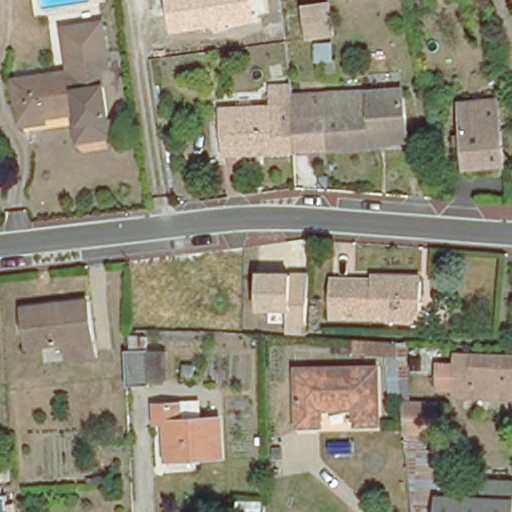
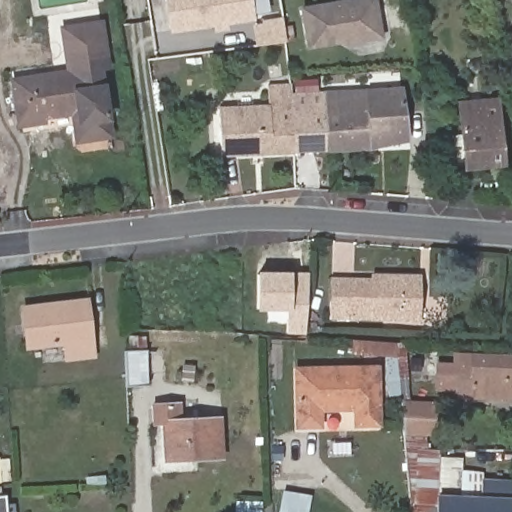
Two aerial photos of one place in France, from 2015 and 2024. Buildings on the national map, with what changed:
unchanged [(172,34),(168,0),(254,0),(256,21),(172,34)]
new [(344,45),(308,51),(300,8),(342,0),(377,0),(385,39),(344,46),(344,45)]
unchanged [(77,106),(21,114),(15,76),(73,68),(67,25),(104,20),(110,63),(100,64),(110,134),(82,137),(77,106)]
demolished [(331,26),(333,43),(310,46),(308,30),(331,26)]
unchanged [(224,166),(222,118),(270,115),(270,95),(292,95),(293,103),(295,163),(224,166)]
unchanged [(293,103),(318,103),(318,97),(327,96),(327,106),(328,161),(295,163),(293,103)]
unchanged [(468,169),(463,115),(462,104),(500,100),(501,111),(506,166),(468,169)]
unchanged [(404,104),(410,155),(372,159),(371,105),(404,104)]
unchanged [(327,106),(371,105),(372,159),(328,161),(327,106)]
unchanged [(308,337),(289,337),(289,312),(260,312),(258,274),(309,275),(308,337)]
unchanged [(420,323),(332,321),(333,284),(373,285),(373,281),(421,281),(420,323)]
unchanged [(29,313),(93,305),(99,359),(74,362),(72,345),(34,351),(29,313)]
unchanged [(436,437),(430,436),(431,453),(404,453),(403,433),(402,407),(398,376),(388,375),(386,357),(353,355),(355,341),(408,342),(414,401),(441,404),(436,437)]
unchanged [(127,356),(131,356),(131,342),(148,342),(148,355),(167,355),(167,388),(128,389),(127,356)]
unchanged [(452,353),(512,356),(512,398),(450,395),(452,353)]
unchanged [(322,426),(299,426),(299,372),(377,371),(378,426),(358,426),(358,408),(322,408),(322,426)]
unchanged [(164,426),(156,426),(155,410),(180,409),(180,424),(220,423),(222,462),(166,464),(164,426)]
unchanged [(404,453),(431,453),(440,454),(440,488),(489,489),(488,474),(512,474),(512,512),(412,512),(404,453)]
new [(1,458),(3,484),(0,484),(0,458),(1,458)]
unchanged [(261,499),(260,512),(233,512),(233,498),(261,499)]
unchanged [(13,512),(0,512),(0,502),(12,501),(13,512)]

